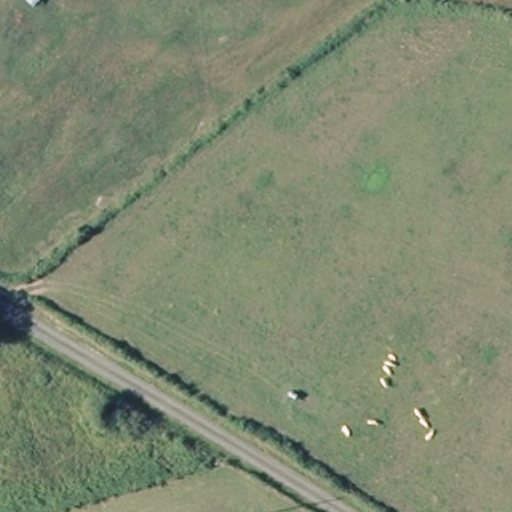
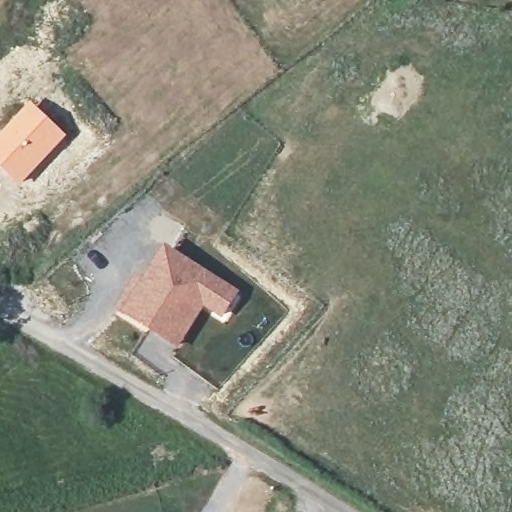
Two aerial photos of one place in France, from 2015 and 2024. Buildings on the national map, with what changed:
new [(31,102),(67,136),(21,185),(0,165),(0,136),(31,102)]
new [(166,245),(240,291),(223,320),(204,310),(180,349),(121,314),(166,245)]

